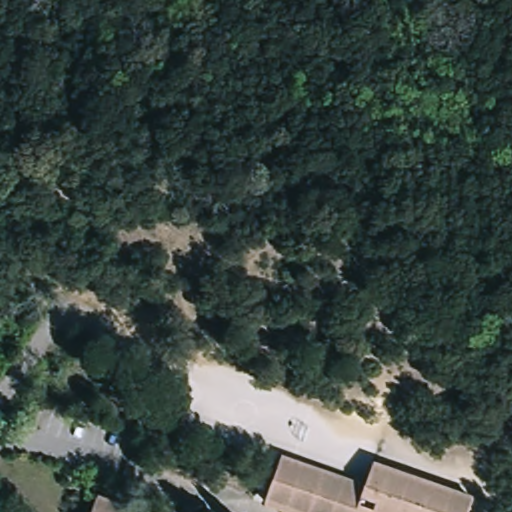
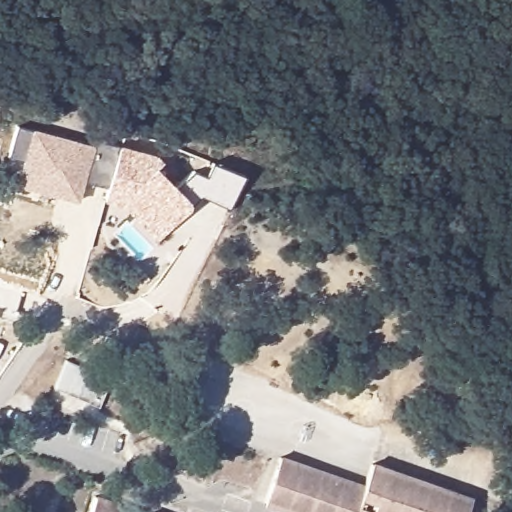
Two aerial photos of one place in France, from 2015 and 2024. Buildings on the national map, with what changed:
new [(8,156),(17,127),(31,132),(32,130),(93,146),(95,141),(119,147),(108,188),(83,182),(76,203),(16,186),(23,160),(8,156)]
new [(193,171),(206,175),(212,161),(243,175),(229,208),(198,195),(191,202),(190,209),(156,241),(122,206),(103,200),(108,188),(119,147),(155,152),(161,162),(155,166),(173,185),(193,171)]
new [(55,388),(67,361),(112,381),(100,408),(55,388)]
unchanged [(281,458),(360,483),(351,512),(278,512),(264,507),(281,458)]
unchanged [(359,509),(376,462),(471,492),(464,512),(369,512),(359,509)]
unchanged [(94,498),(138,512),(90,512),(94,498)]

